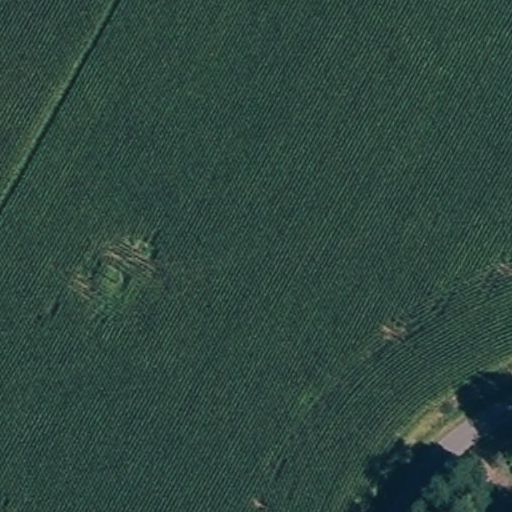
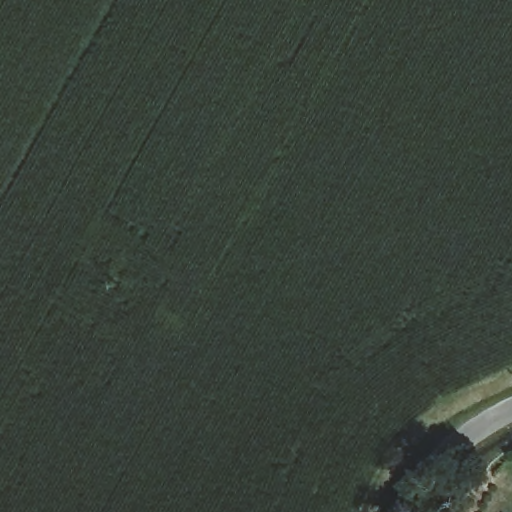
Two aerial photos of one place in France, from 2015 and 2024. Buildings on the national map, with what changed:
unchanged [(450,512),(455,493),(512,509),(512,512),(450,512)]

